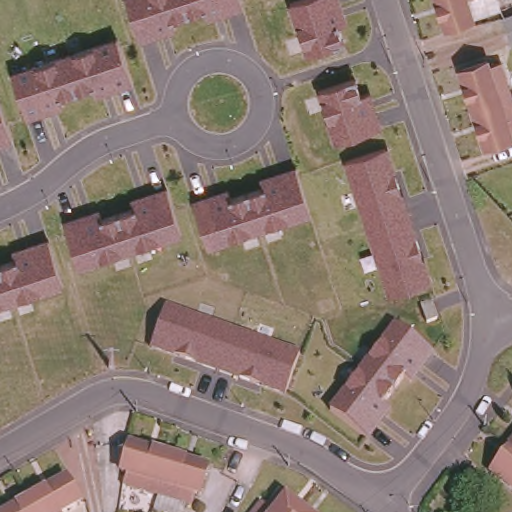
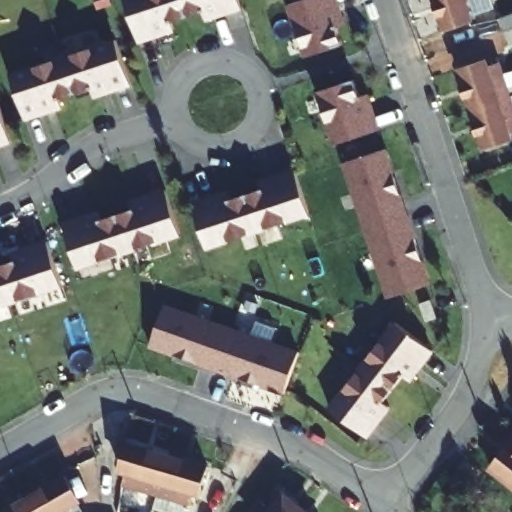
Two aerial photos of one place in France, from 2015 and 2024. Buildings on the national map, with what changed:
unchanged [(205,12),(202,7),(170,16),(172,23),(137,35),(125,0),(237,0),(238,3),(205,12)]
unchanged [(338,0),(344,21),(336,23),(340,40),(304,51),(290,1),(292,0),(338,0)]
unchanged [(450,24),(442,0),(472,0),(477,15),(450,24)]
unchanged [(505,30),(501,18),(512,14),(512,44),(510,44),(505,30)]
unchanged [(115,37),(128,79),(93,90),(92,84),(58,96),(60,104),(24,114),(10,71),(115,37)]
unchanged [(462,109),(449,72),(476,63),(477,67),(490,63),(501,96),(462,109)]
unchanged [(354,79),(358,94),(367,92),(378,129),(335,141),(320,89),(354,79)]
unchanged [(512,129),(499,133),(500,136),(473,145),(462,109),(501,96),(512,129)]
unchanged [(8,136),(0,139),(0,109),(8,136)]
unchanged [(385,149),(425,279),(387,293),(345,162),(385,149)]
unchanged [(310,212),(210,244),(197,204),(225,193),(228,199),(262,189),(260,182),(296,169),(310,212)]
unchanged [(179,231),(78,264),(64,220),(97,209),(101,215),(132,207),(131,199),(165,187),(179,231)]
unchanged [(0,307),(0,254),(43,241),(58,290),(0,307)]
unchanged [(297,352),(283,393),(150,345),(165,304),(297,352)]
unchanged [(430,349),(367,436),(330,409),(393,324),(430,349)]
unchanged [(130,439),(167,451),(155,490),(123,481),(127,468),(122,466),(130,439)]
unchanged [(512,439),(512,481),(491,464),(512,439)]
unchanged [(205,462),(198,488),(193,487),(189,499),(155,490),(167,451),(205,462)]
unchanged [(70,472),(83,497),(65,508),(67,512),(46,512),(35,492),(70,472)]
unchanged [(288,512),(244,512),(262,489),(267,494),(280,479),(300,496),(288,512)]
unchanged [(46,512),(1,512),(0,511),(35,492),(46,512)]
unchanged [(321,512),(288,512),(300,496),(321,512)]
unchanged [(103,511),(119,509),(119,512),(91,512),(103,511)]

